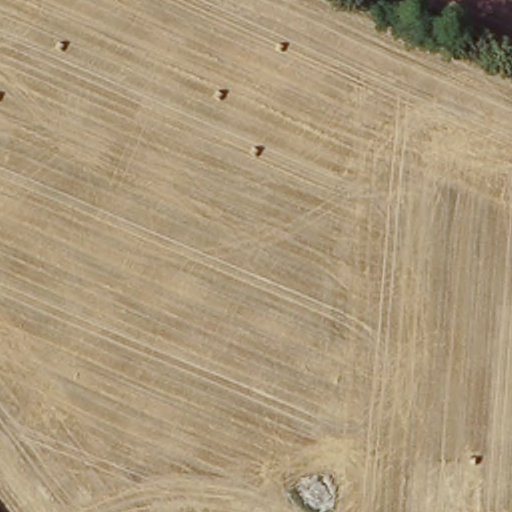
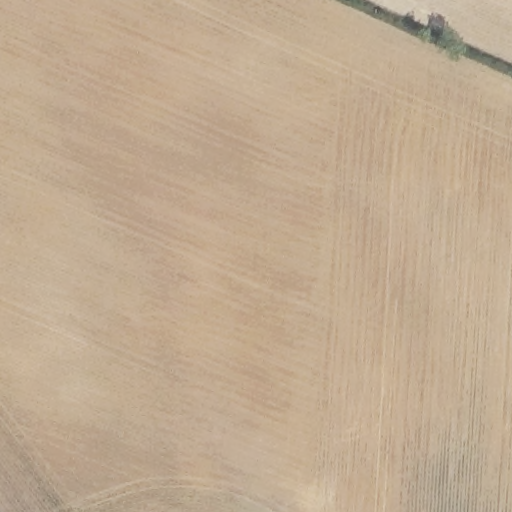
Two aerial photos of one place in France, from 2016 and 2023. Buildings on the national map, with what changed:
unchanged [(331,506),(322,512),(311,512),(305,499),(322,489),(331,506)]

